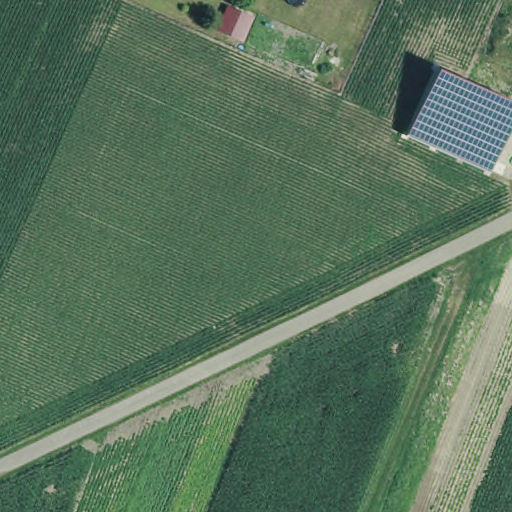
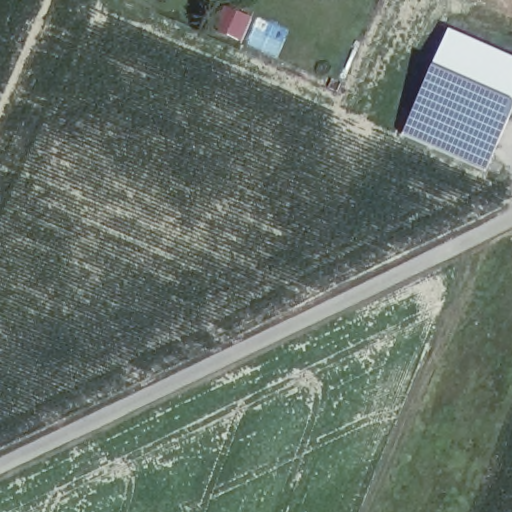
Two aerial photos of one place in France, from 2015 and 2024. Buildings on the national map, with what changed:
new [(450,29),(512,54),(512,102),(435,67),(450,29)]
unchanged [(435,67),(512,102),(512,115),(487,172),(405,135),(435,67)]

